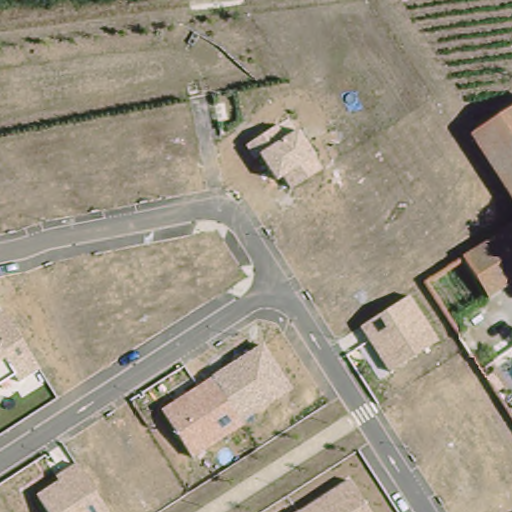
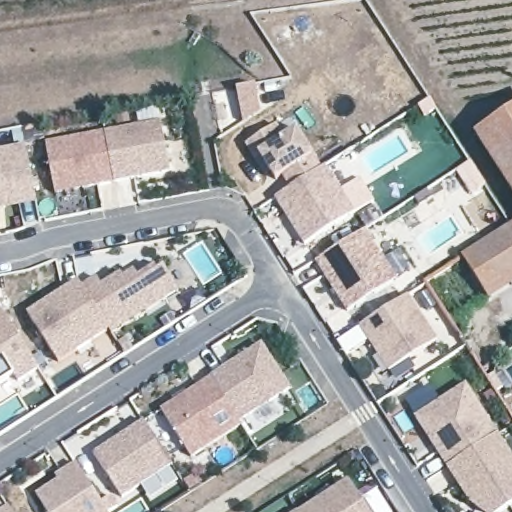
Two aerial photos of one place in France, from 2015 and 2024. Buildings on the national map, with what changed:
new [(430,100),(436,110),(426,116),(419,107),(430,100)]
unchanged [(512,116),(512,190),(479,138),(512,116)]
new [(160,124),(169,173),(114,184),(104,135),(160,124)]
unchanged [(261,159),(258,162),(246,145),(278,125),(286,136),(296,129),(315,156),(325,167),(291,188),(286,177),(276,181),(261,159)]
unchanged [(104,135),(114,184),(55,195),(45,145),(104,135)]
new [(0,211),(0,158),(26,153),(35,197),(36,205),(0,211)]
new [(471,164),(478,176),(466,184),(459,171),(471,164)]
new [(354,214),(303,246),(274,200),(291,188),(325,167),(354,214)]
unchanged [(512,230),(512,291),(491,304),(463,261),(512,230)]
new [(381,260),(396,282),(391,285),(346,313),(314,262),(364,232),(381,260)]
new [(95,278),(100,287),(120,275),(123,278),(133,272),(137,278),(154,268),(156,272),(163,268),(178,292),(110,335),(108,331),(81,287),(95,278)]
new [(77,282),(81,287),(108,331),(57,363),(26,315),(77,282)]
unchanged [(338,341),(361,327),(410,295),(438,339),(389,372),(369,341),(346,355),(338,341)]
unchanged [(1,312),(39,368),(18,382),(14,375),(0,383),(0,313),(1,312)]
unchanged [(161,409),(264,343),(292,388),(238,422),(241,427),(191,458),(161,409)]
new [(459,388),(492,438),(446,468),(413,418),(459,388)]
new [(143,421),(171,465),(120,497),(92,454),(143,421)]
new [(496,436),(512,461),(512,505),(501,512),(479,512),(468,503),(446,468),(492,438),(496,436)]
unchanged [(59,481),(58,476),(78,463),(107,512),(48,512),(38,495),(59,481)]
unchanged [(369,512),(299,512),(349,481),(369,512)]
unchanged [(11,512),(1,512),(8,507),(11,512)]

